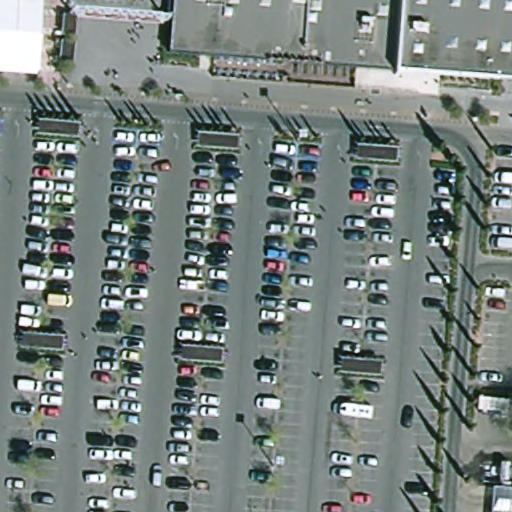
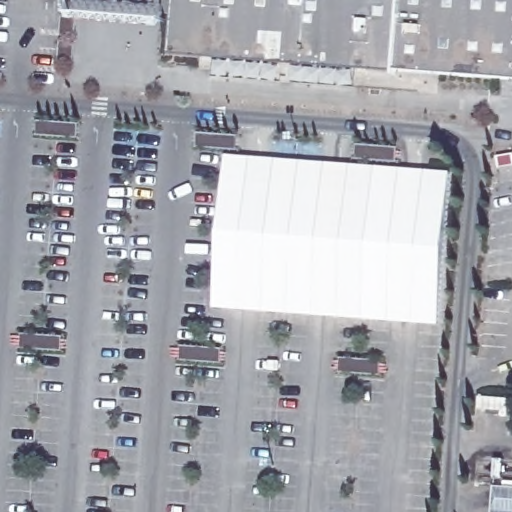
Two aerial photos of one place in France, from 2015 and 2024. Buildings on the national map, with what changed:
unchanged [(177,0),(512,0),(512,82),(173,57),(177,0)]
new [(355,165),(357,145),(398,147),(396,167),(450,172),(438,324),(214,307),(226,155),(355,165)]
unchanged [(499,484),(512,485),(512,512),(497,512),(499,484)]

